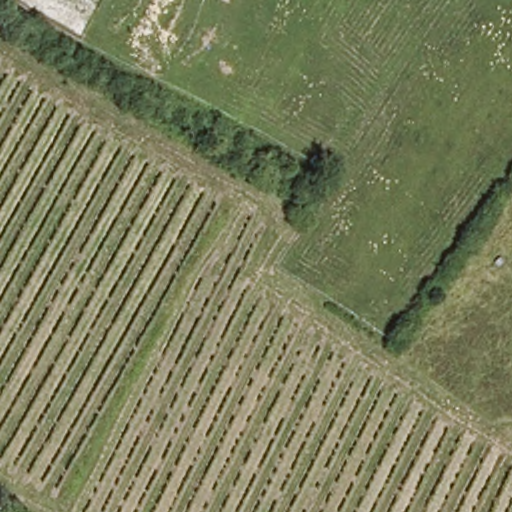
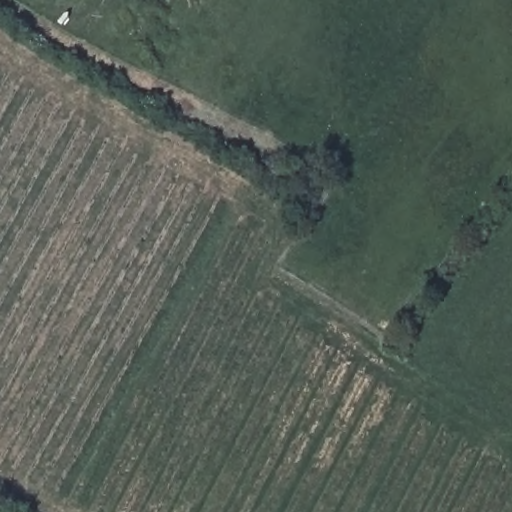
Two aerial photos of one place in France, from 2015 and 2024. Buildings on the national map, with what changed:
[]

